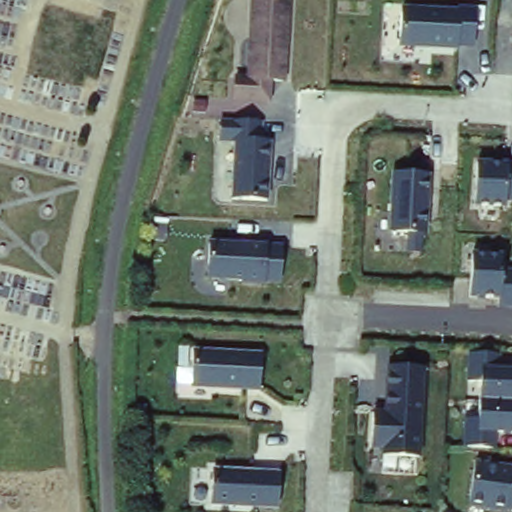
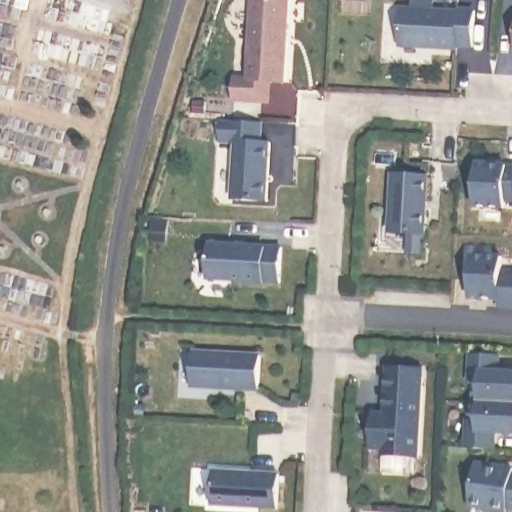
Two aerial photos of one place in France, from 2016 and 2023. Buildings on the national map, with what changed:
unchanged [(266,82),(265,101),(230,100),(231,77),(243,77),(246,0),(290,0),(284,85),(266,82)]
unchanged [(470,51),(397,48),(400,9),(472,12),(470,51)]
unchanged [(231,145),(237,143),(238,137),(221,141),(222,124),(260,122),(260,142),(270,145),(267,203),(229,201),(231,145)]
unchanged [(505,212),(472,212),(475,161),(510,162),(510,170),(512,170),(512,200),(504,199),(505,212)]
unchanged [(425,176),(425,237),(388,237),(390,176),(425,176)]
unchanged [(279,249),(278,283),(205,281),(209,247),(279,249)]
unchanged [(500,269),(512,269),(512,310),(499,310),(498,299),(470,298),(471,257),(498,258),(500,269)]
unchanged [(257,355),(255,390),(190,386),(195,351),(257,355)]
unchanged [(474,421),(478,372),(464,374),(464,354),(493,355),(492,372),(512,373),(512,435),(490,435),(490,450),(463,448),(465,423),(474,421)]
unchanged [(415,462),(385,462),(386,447),(368,447),(370,411),(382,412),(385,371),(420,372),(415,462)]
unchanged [(506,471),(512,472),(512,505),(505,505),(503,510),(466,506),(473,462),(507,465),(506,471)]
unchanged [(279,477),(276,510),(210,506),(212,475),(279,477)]

